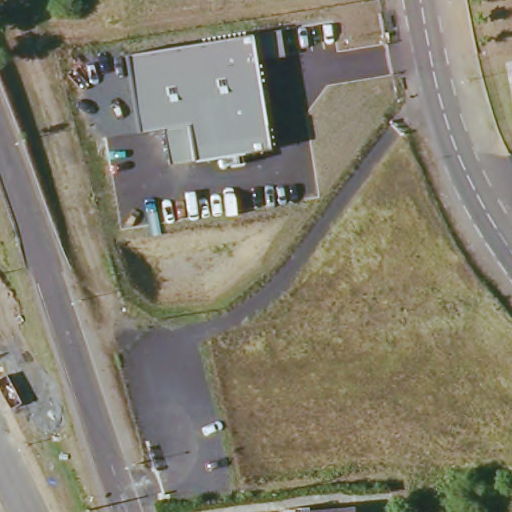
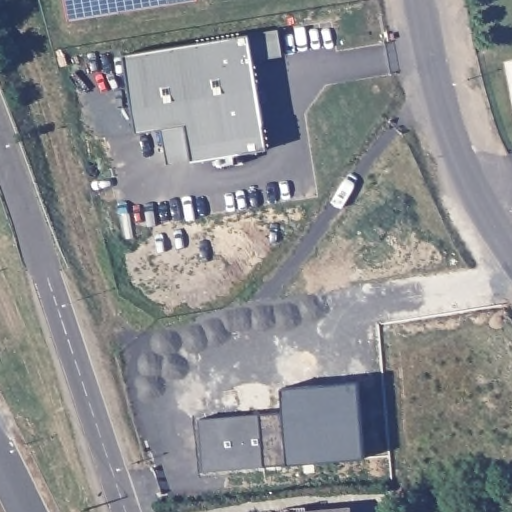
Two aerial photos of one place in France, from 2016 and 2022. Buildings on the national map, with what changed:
new [(73,19),(73,14),(70,0),(194,0),(73,19)]
unchanged [(250,36),(268,150),(194,161),(170,164),(165,128),(139,132),(126,56),(250,36)]
new [(197,474),(193,420),(281,414),(279,390),(356,385),(361,462),(197,474)]

